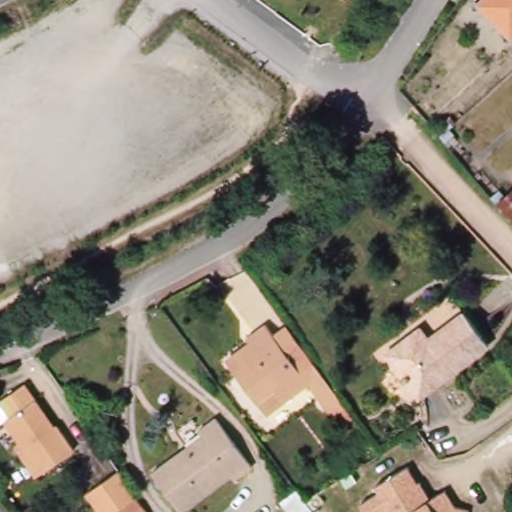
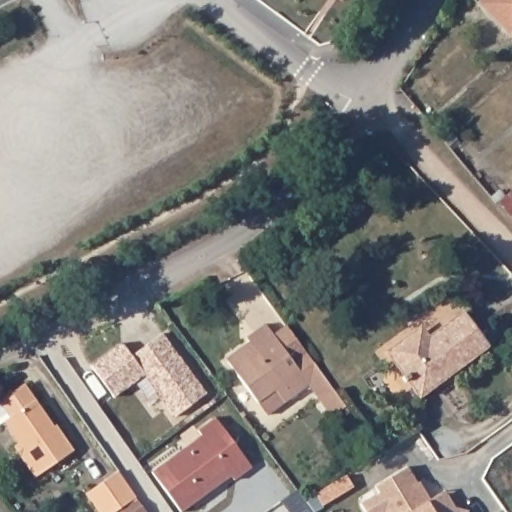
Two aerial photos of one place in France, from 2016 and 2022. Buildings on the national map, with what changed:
unchanged [(477,3),(481,0),(512,0),(512,36),(510,38),(477,3)]
unchanged [(497,203),(512,190),(512,220),(497,203)]
unchanged [(489,351),(419,402),(386,357),(413,337),(421,349),(463,317),(489,351)]
unchanged [(293,362),(305,353),(346,407),(331,419),(309,387),(284,403),(275,390),(257,402),(228,362),(230,360),(251,345),(246,338),(265,324),(293,362)]
new [(207,394),(176,417),(145,375),(114,397),(91,366),(123,343),(136,361),(149,351),(145,346),(162,333),(207,394)]
new [(145,346),(149,351),(136,361),(132,356),(145,346)]
unchanged [(4,421),(10,417),(0,402),(0,401),(24,384),(53,427),(56,425),(73,451),(36,478),(21,456),(15,447),(20,444),(4,421)]
unchanged [(182,512),(181,512),(152,473),(202,436),(198,431),(215,418),(252,467),(234,481),(231,476),(182,512)]
unchanged [(360,504),(378,493),(374,488),(409,468),(417,482),(419,481),(429,499),(445,490),(455,507),(470,509),(469,512),(365,512),(360,504)]
unchanged [(134,499),(115,512),(99,512),(86,494),(119,472),(123,478),(134,494),(137,497),(134,499)]
unchanged [(313,512),(289,512),(281,502),(297,490),(305,501),(313,512)]

